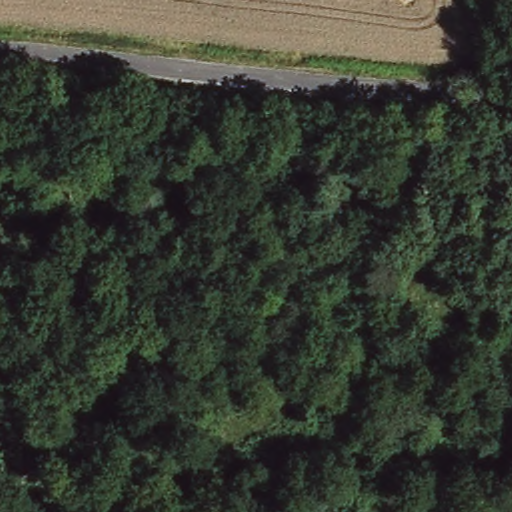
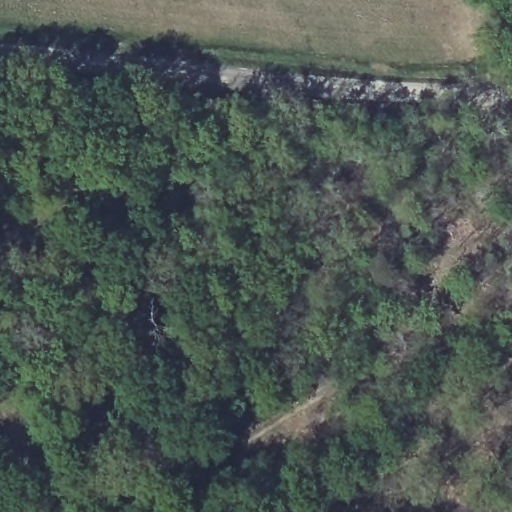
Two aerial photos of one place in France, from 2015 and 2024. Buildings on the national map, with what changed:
unchanged [(437,214),(439,238),(419,239),(417,215),(437,214)]

